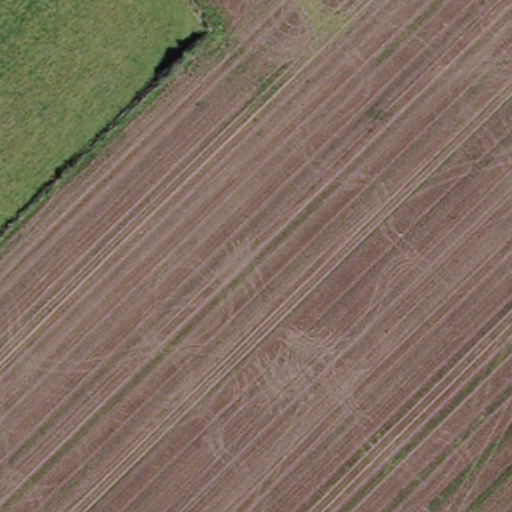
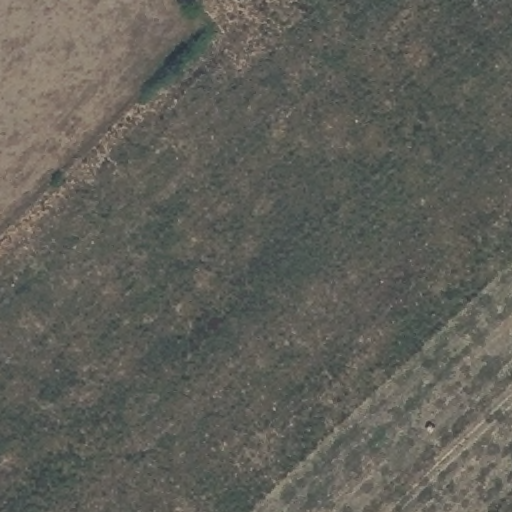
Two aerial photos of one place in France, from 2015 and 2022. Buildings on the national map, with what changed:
[]

